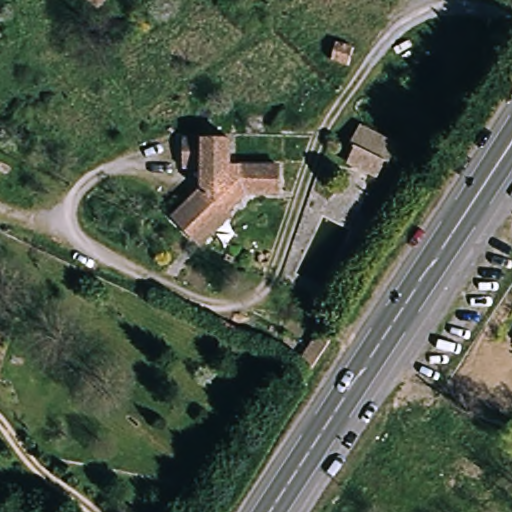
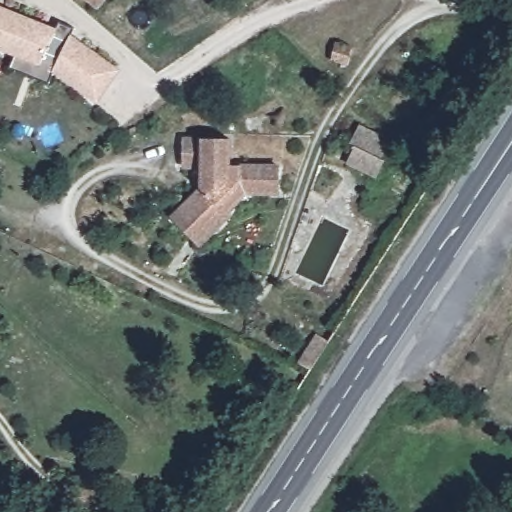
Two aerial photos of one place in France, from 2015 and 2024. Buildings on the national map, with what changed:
unchanged [(98,15),(81,0),(110,0),(98,15)]
new [(96,104),(52,74),(48,83),(8,68),(13,56),(0,50),(0,7),(55,29),(57,24),(71,30),(70,34),(119,70),(96,104)]
unchanged [(347,163),(355,145),(350,142),(360,120),(398,136),(388,159),(382,156),(375,175),(347,163)]
unchanged [(207,253),(195,241),(177,222),(205,193),(206,168),(187,165),(187,136),(234,138),(235,159),(283,161),(283,194),(255,193),(232,214),(238,221),(207,253)]
unchanged [(315,328),(327,338),(308,368),(295,357),(315,328)]

